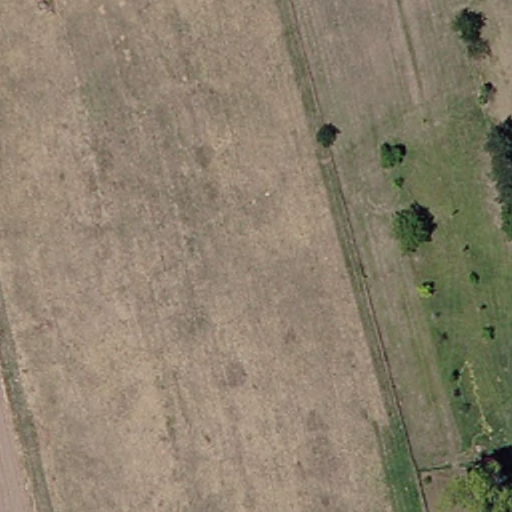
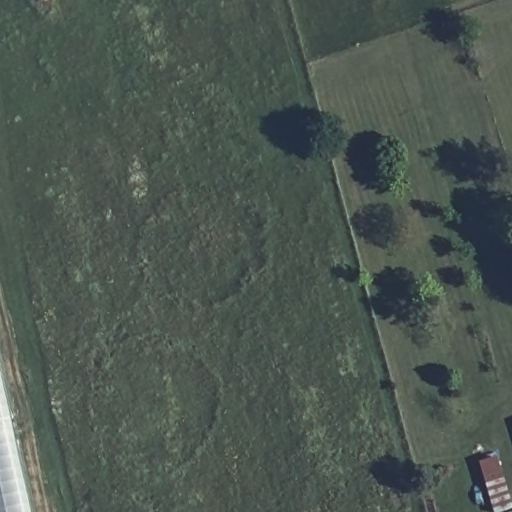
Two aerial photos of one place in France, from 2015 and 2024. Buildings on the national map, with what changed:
new [(0,366),(32,512),(0,512),(0,366)]
unchanged [(507,454),(512,472),(512,507),(502,510),(487,461),(507,454)]

